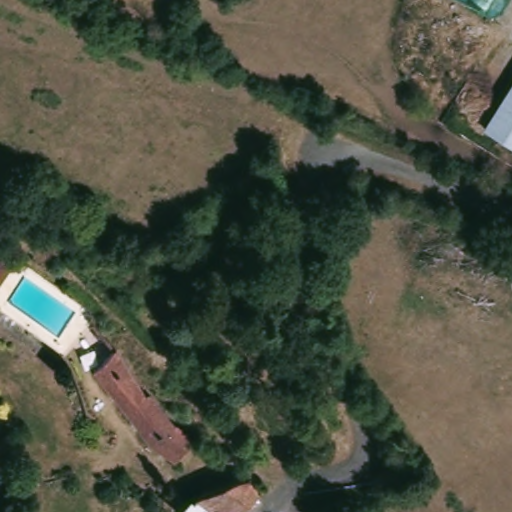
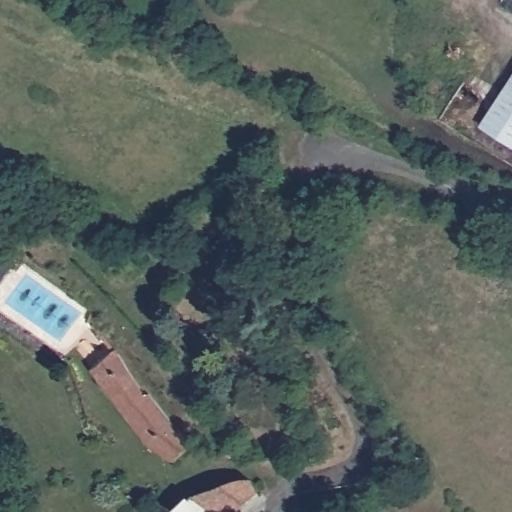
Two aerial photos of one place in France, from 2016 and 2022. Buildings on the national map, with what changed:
unchanged [(480,128),(512,75),(512,149),(480,128)]
unchanged [(114,347),(197,448),(171,470),(87,368),(114,347)]
unchanged [(232,485),(255,504),(245,512),(174,512),(199,494),(232,485)]

